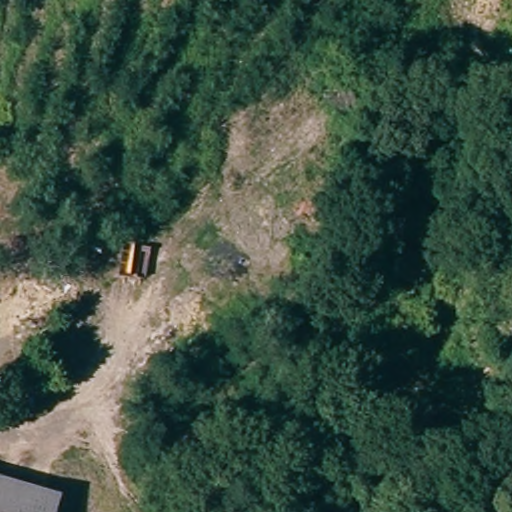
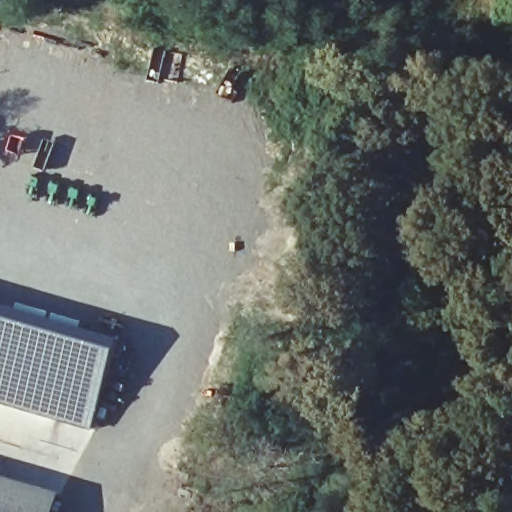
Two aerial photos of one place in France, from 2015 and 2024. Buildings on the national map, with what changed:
demolished [(0,332),(0,279),(21,290),(0,332)]
new [(95,432),(0,403),(0,306),(123,342),(95,432)]
unchanged [(57,512),(0,512),(0,481),(60,497),(57,512)]

